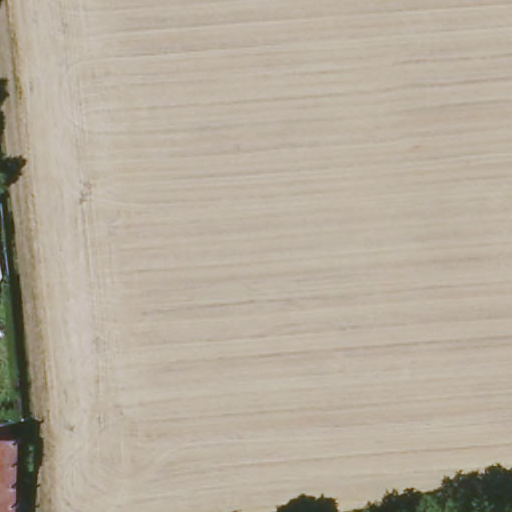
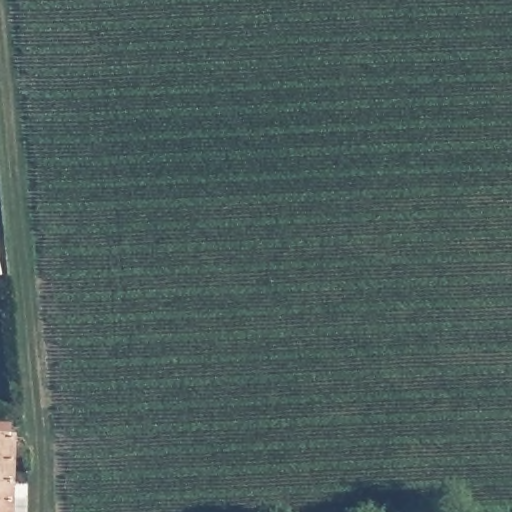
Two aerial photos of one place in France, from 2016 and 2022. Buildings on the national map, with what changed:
unchanged [(7,439),(16,440),(14,512),(0,512),(0,424),(8,424),(7,439)]

